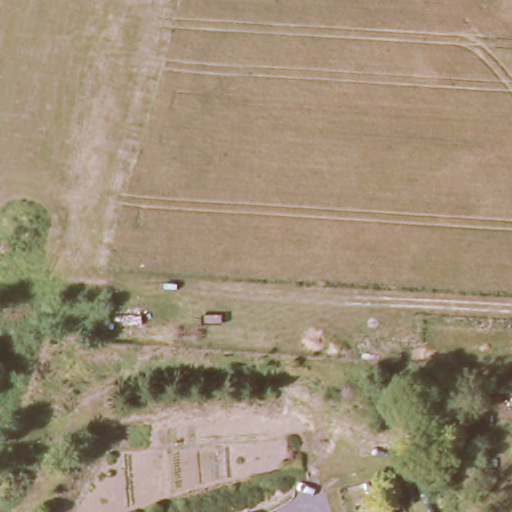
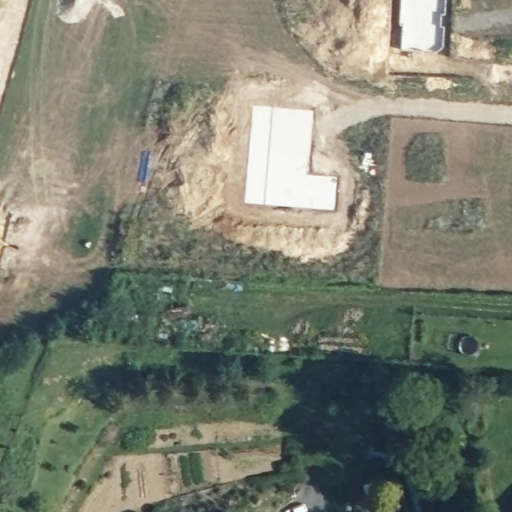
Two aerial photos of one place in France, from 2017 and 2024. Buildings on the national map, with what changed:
new [(399,23),(400,0),(448,0),(445,15),(440,16),(440,27),(445,28),(444,46),(437,54),(401,51),(402,24),(399,23)]
new [(255,106),(312,111),(305,175),(337,178),(334,210),(245,202),(255,106)]

